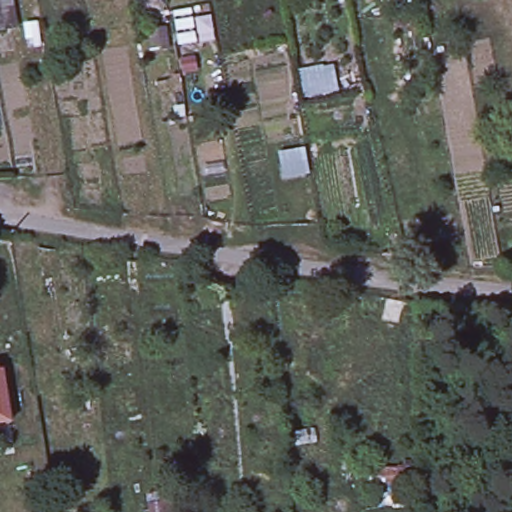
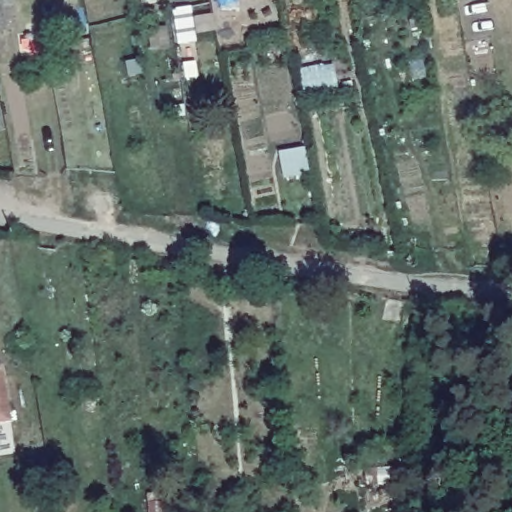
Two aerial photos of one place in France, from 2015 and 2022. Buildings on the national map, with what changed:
unchanged [(16,5),(20,29),(0,31),(0,0),(7,0),(8,5),(16,5)]
unchanged [(6,365),(15,422),(3,424),(2,418),(0,418),(0,365),(6,365)]
unchanged [(402,465),(406,506),(383,508),(380,480),(355,482),(353,467),(402,465)]
unchanged [(169,505),(169,512),(155,512),(154,506),(169,505)]

